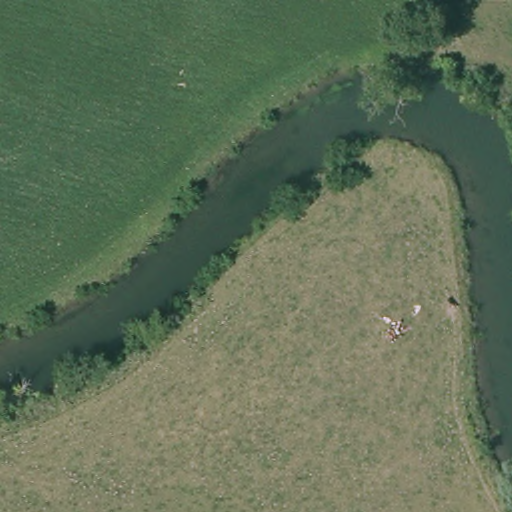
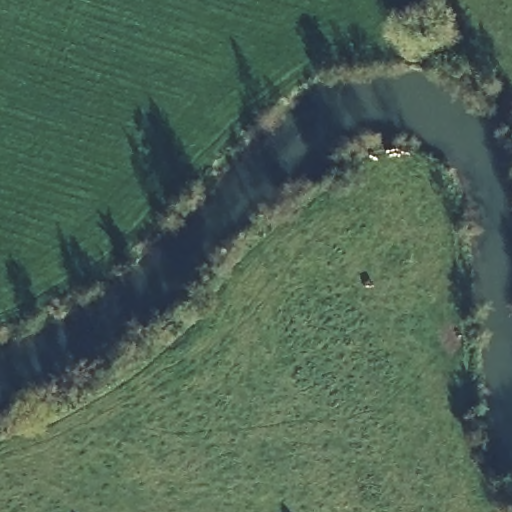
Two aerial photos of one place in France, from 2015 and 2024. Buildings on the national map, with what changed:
unchanged [(454,64),(479,68),(473,88),(448,84),(454,64)]

